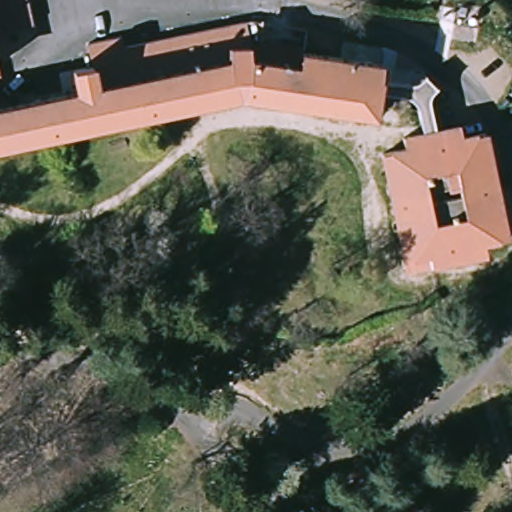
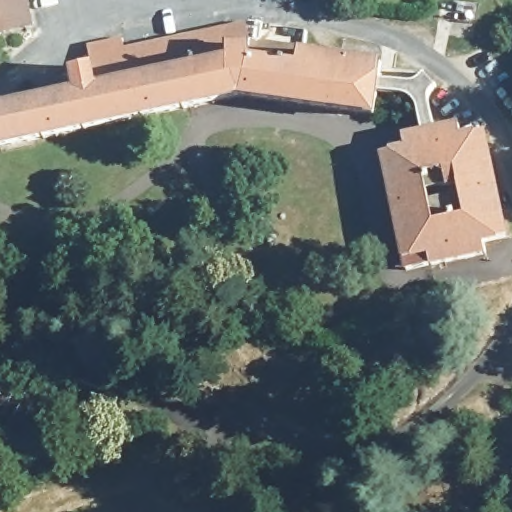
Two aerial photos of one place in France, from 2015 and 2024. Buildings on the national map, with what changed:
unchanged [(41,27),(0,37),(0,0),(35,0),(41,27)]
unchanged [(79,71),(103,66),(101,53),(249,21),(250,37),(394,59),(391,77),(431,85),(440,76),(452,89),(443,98),(451,111),(455,127),(476,124),(478,136),(502,132),(512,178),(512,241),(503,244),(505,254),(447,265),(445,255),(420,259),(396,152),(419,148),(416,134),(436,131),(433,110),(424,99),(406,91),(389,89),(384,112),(258,98),(0,152),(0,113),(84,97),(79,71)]
unchanged [(0,68),(0,44),(5,66),(0,68)]

